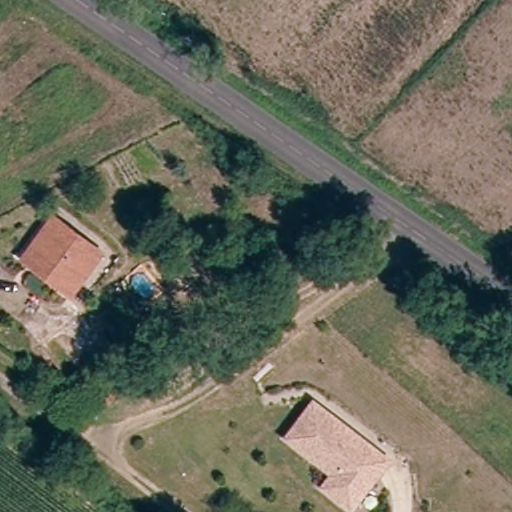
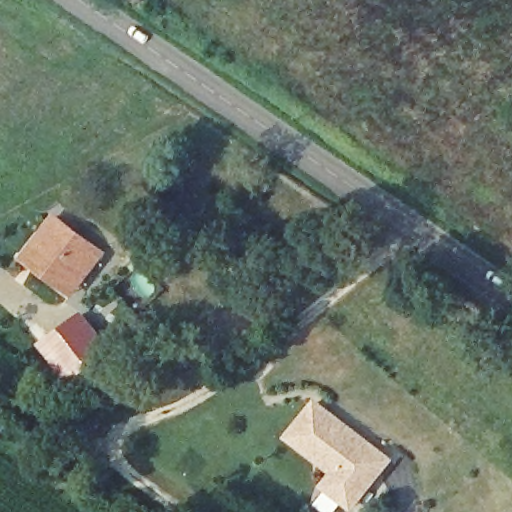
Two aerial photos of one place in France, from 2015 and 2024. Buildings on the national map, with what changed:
unchanged [(36,266),(20,253),(53,212),(102,254),(75,286),(69,293),(36,266)]
new [(111,350),(68,384),(38,346),(80,312),(111,350)]
unchanged [(347,498),(325,484),(334,470),(287,440),(311,401),(391,452),(379,471),(357,505),(347,498)]

